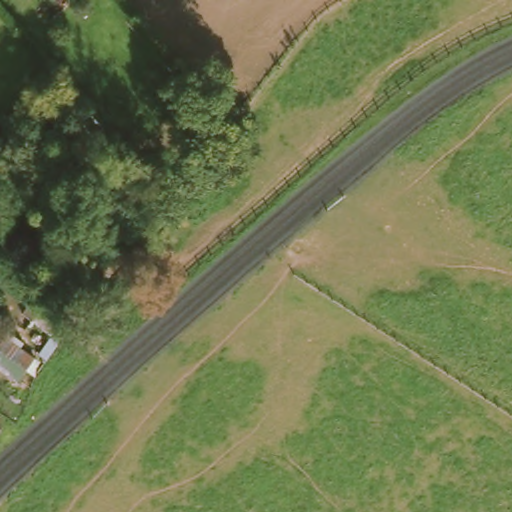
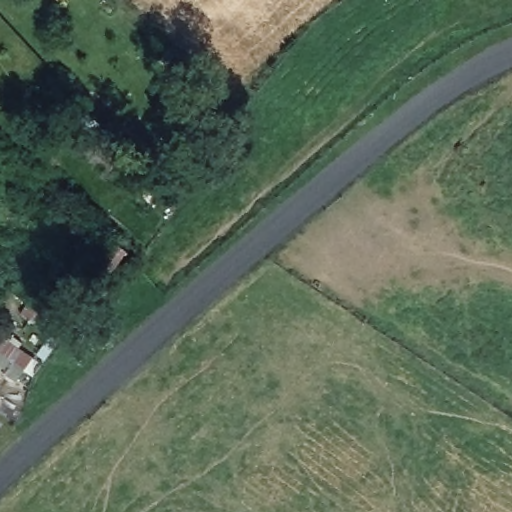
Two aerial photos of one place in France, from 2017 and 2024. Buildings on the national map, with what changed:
unchanged [(0,367),(0,354),(4,350),(12,338),(41,359),(33,370),(25,383),(0,367)]

